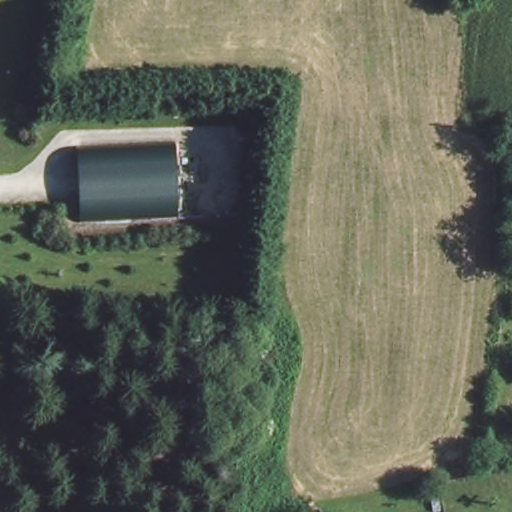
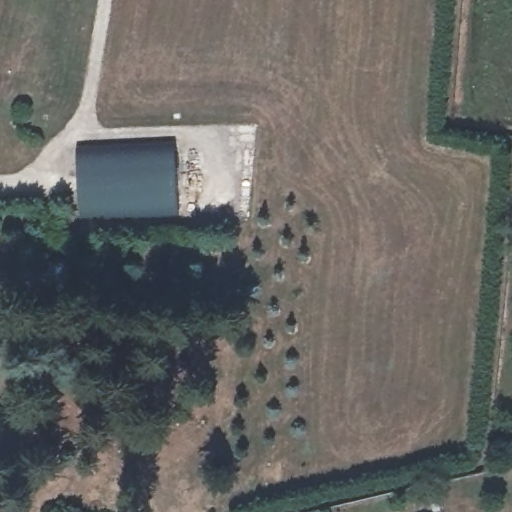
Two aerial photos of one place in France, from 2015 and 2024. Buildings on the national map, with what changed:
unchanged [(179,210),(78,215),(73,154),(176,151),(179,210)]

